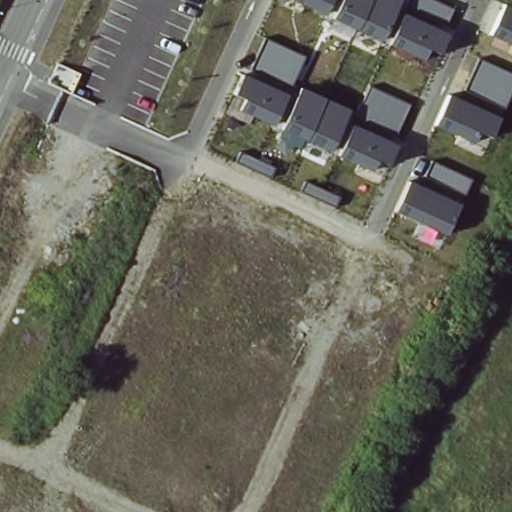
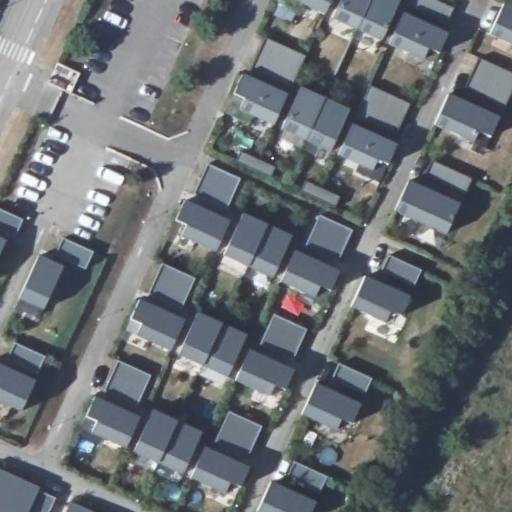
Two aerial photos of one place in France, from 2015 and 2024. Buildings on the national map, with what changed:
unchanged [(291,1),(292,0),(332,0),(325,16),(291,1)]
unchanged [(398,0),(379,41),(333,19),(341,0),(398,0)]
unchanged [(431,0),(452,9),(444,26),(450,30),(441,52),(431,48),(425,60),(391,43),(412,0),(431,0)]
unchanged [(503,4),(512,8),(512,45),(491,35),(503,4)]
unchanged [(244,98),(233,93),(243,72),(250,75),(266,40),(303,58),(273,124),(238,110),(244,98)]
unchanged [(448,94),(461,99),(479,61),(512,77),(512,88),(491,138),(478,132),(473,142),(434,124),(448,94)]
unchanged [(408,105),(394,143),(398,145),(389,164),(377,160),(372,172),(339,157),(370,86),(408,105)]
unchanged [(348,110),(329,153),(282,131),(300,89),(348,110)]
new [(207,164),(240,178),(226,207),(193,194),(207,164)]
unchanged [(409,182),(422,187),(433,164),(468,180),(445,234),(395,211),(409,182)]
new [(186,225),(175,220),(185,201),(228,220),(215,251),(180,238),(186,225)]
new [(10,234),(0,229),(0,208),(18,216),(10,234)]
new [(241,213),(290,235),(271,276),(223,255),(241,213)]
new [(319,215),(353,230),(337,260),(306,245),(319,215)]
new [(95,251),(86,268),(55,254),(63,237),(95,251)]
new [(0,250),(0,238),(5,240),(0,250)]
new [(294,251),(339,270),(329,290),(319,285),(314,297),(280,282),(294,251)]
new [(39,254),(63,264),(42,310),(20,298),(39,254)]
new [(388,255),(422,271),(414,287),(380,271),(388,255)]
new [(161,264),(195,279),(181,308),(148,294),(161,264)]
new [(364,276),(409,295),(399,316),(388,311),(384,322),(350,307),(364,276)]
new [(140,299),(183,317),(169,350),(136,335),(140,324),(130,320),(140,299)]
new [(196,312),(245,334),(226,377),(178,356),(196,312)]
new [(273,314),(306,328),(293,358),(259,345),(273,314)]
new [(46,356),(38,373),(6,359),(14,342),(46,356)]
new [(248,350),(293,369),(282,390),(271,385),(268,396),(235,380),(248,350)]
new [(117,360),(149,375),(136,405),(103,391),(117,360)]
new [(338,363),(372,379),(365,394),(331,379),(338,363)]
new [(20,410),(0,402),(0,365),(33,379),(20,410)]
new [(315,383),(360,403),(350,424),(340,419),(334,430),(301,414),(315,383)]
new [(91,434),(96,421),(85,416),(95,397),(138,416),(124,448),(91,434)]
new [(133,452),(153,410),(198,431),(181,474),(133,452)]
new [(228,412),(261,427),(248,456),(215,442),(228,412)]
new [(203,447),(248,466),(238,487),(228,482),(224,493),(190,478),(203,447)]
new [(327,476),(320,492),(286,476),(293,461),(327,476)]
new [(37,490),(55,498),(49,512),(0,512),(0,469),(38,486),(37,490)]
new [(271,482),(315,501),(309,512),(258,512),(271,482)]
new [(70,502),(93,512),(66,512),(70,502)]

